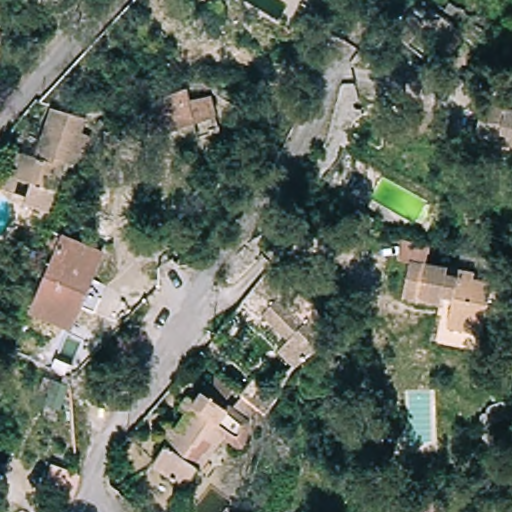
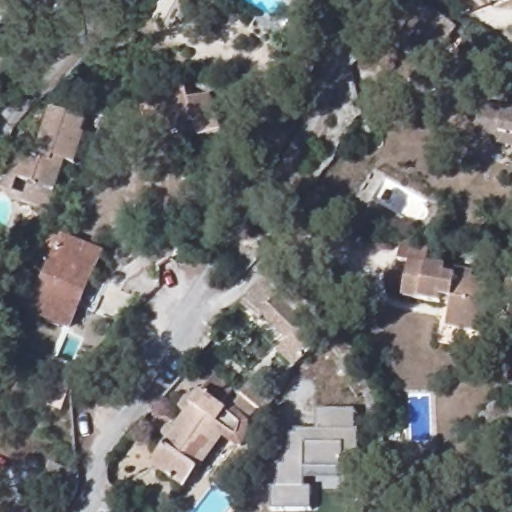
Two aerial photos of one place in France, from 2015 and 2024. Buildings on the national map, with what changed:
unchanged [(452,48),(447,43),(434,60),(418,46),(445,8),(469,26),(452,48)]
unchanged [(165,109),(223,91),(225,99),(229,120),(140,146),(134,116),(165,109)]
unchanged [(476,138),(480,110),(512,114),(512,144),(476,138)]
unchanged [(0,191),(0,180),(1,176),(13,180),(21,154),(33,158),(44,123),(72,131),(67,148),(77,151),(71,173),(62,170),(48,214),(6,199),(0,191)]
unchanged [(66,328),(33,309),(49,274),(38,268),(53,239),(63,243),(69,234),(104,251),(66,328)]
unchanged [(480,338),(447,331),(451,305),(442,302),(440,306),(398,299),(405,261),(467,273),(466,283),(489,289),(480,338)]
unchanged [(282,276),(316,315),(311,319),(329,341),(305,361),(253,308),(282,276)]
unchanged [(361,357),(340,379),(326,365),(348,343),(361,357)]
unchanged [(224,407),(248,425),(240,457),(221,443),(183,493),(154,470),(168,449),(161,443),(170,432),(177,436),(186,421),(179,415),(188,403),(196,407),(213,387),(226,401),(224,407)]
new [(354,410),(354,431),(359,431),(358,470),(345,471),(345,481),(305,481),(306,489),(312,488),(312,512),(272,512),(272,489),(276,489),(276,466),(283,466),(284,452),(290,452),(290,434),(295,434),(295,431),(315,430),(316,410),(354,410)]

